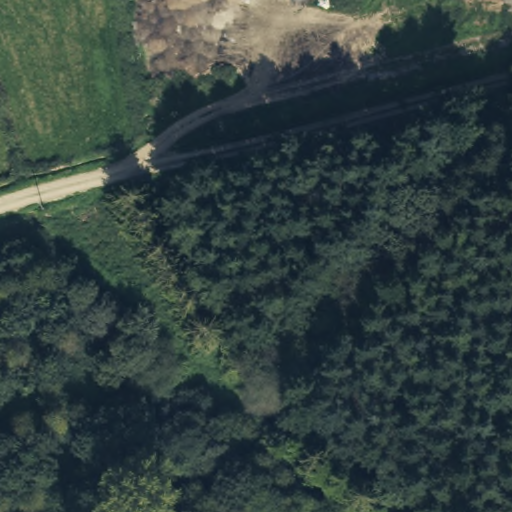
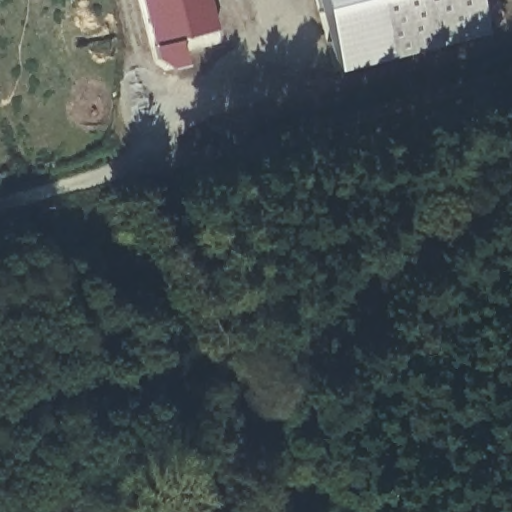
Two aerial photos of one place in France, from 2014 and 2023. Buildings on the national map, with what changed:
new [(216,30),(177,40),(183,66),(169,69),(155,61),(152,47),(140,0),(209,0),(216,30)]
new [(387,58),(333,71),(315,0),(371,0),(387,58)]
new [(371,0),(474,0),(483,34),(387,58),(371,0)]

